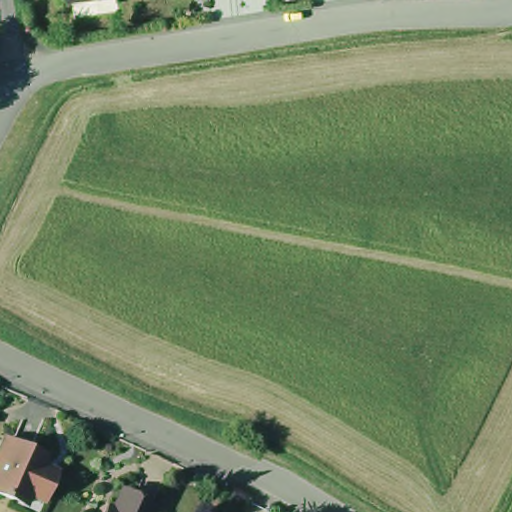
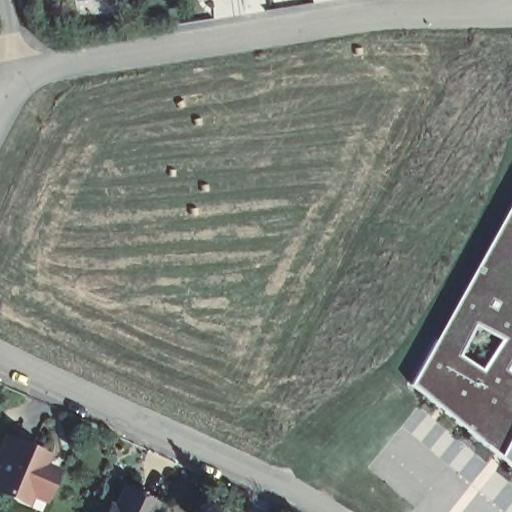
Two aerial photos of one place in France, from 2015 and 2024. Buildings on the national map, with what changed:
unchanged [(71,0),(87,0),(72,3),(71,0)]
new [(512,205),(512,471),(410,387),(512,205)]
unchanged [(45,505),(28,500),(23,512),(22,512),(0,499),(0,461),(12,435),(53,452),(47,469),(61,473),(45,505)]
unchanged [(123,490),(155,505),(152,512),(113,512),(123,490)]
unchanged [(109,510),(112,512),(108,512),(109,510)]

